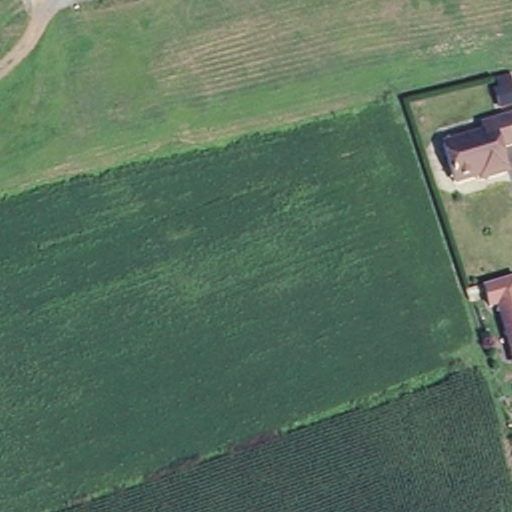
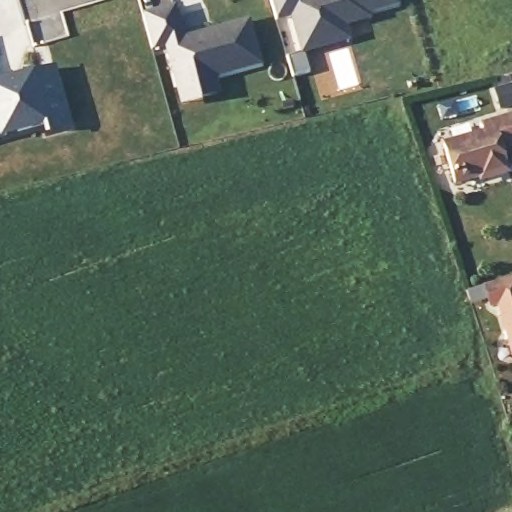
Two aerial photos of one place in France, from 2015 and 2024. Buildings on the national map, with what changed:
new [(399,5),(370,15),(372,18),(347,25),(351,40),(301,55),(291,17),(276,21),(271,0),(398,0),(399,5)]
new [(174,8),(182,39),(248,20),(259,64),(178,86),(166,45),(151,49),(142,16),(174,8)]
new [(51,69),(68,126),(45,133),(42,124),(0,137),(0,83),(51,69)]
unchanged [(482,178),(480,171),(454,178),(445,142),(485,132),(482,120),(510,111),(512,111),(512,146),(504,148),(511,170),(482,178)]
unchanged [(490,305),(484,283),(512,274),(512,348),(498,303),(490,305)]

